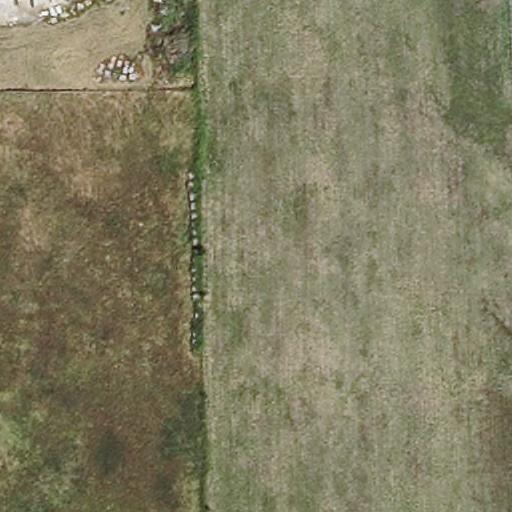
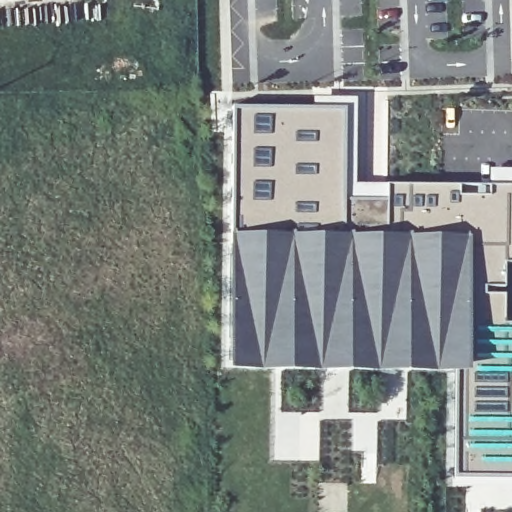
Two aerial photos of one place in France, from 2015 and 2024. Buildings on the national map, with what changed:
demolished [(100,22),(94,0),(125,0),(129,14),(100,22)]
new [(234,107),(313,107),(314,97),(356,97),(355,183),(388,184),(512,185),(512,261),(505,261),(505,285),(485,286),(485,294),(505,293),(505,322),(512,323),(512,477),(455,476),(455,371),(229,370),(232,234),(234,107)]

